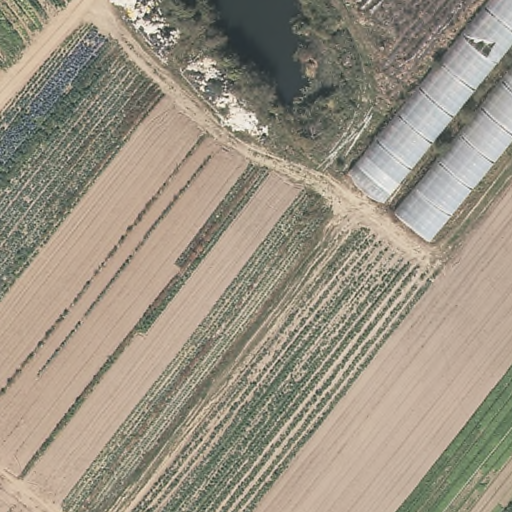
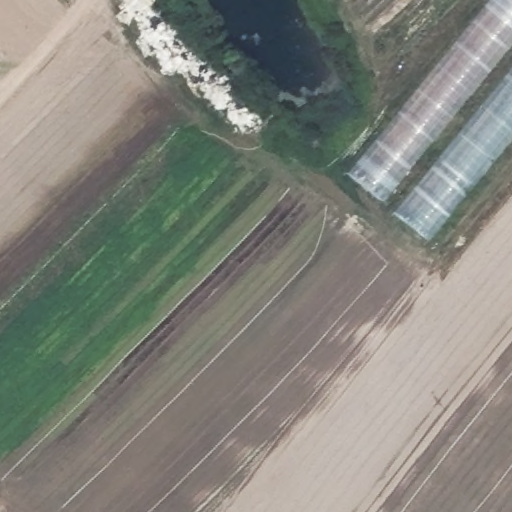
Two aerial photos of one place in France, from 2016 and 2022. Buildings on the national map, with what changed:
unchanged [(512,0),(512,136),(429,235),(346,165),(479,0),(512,0)]

